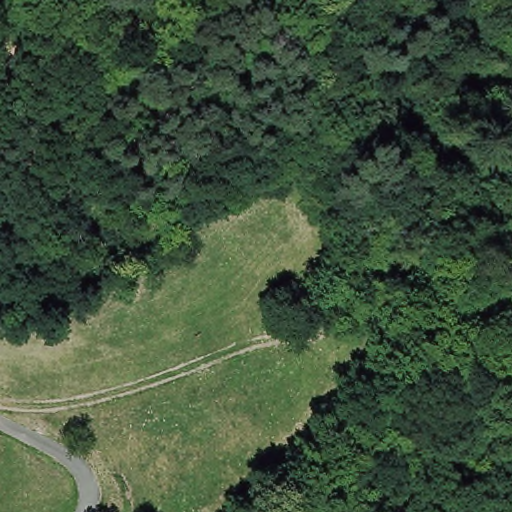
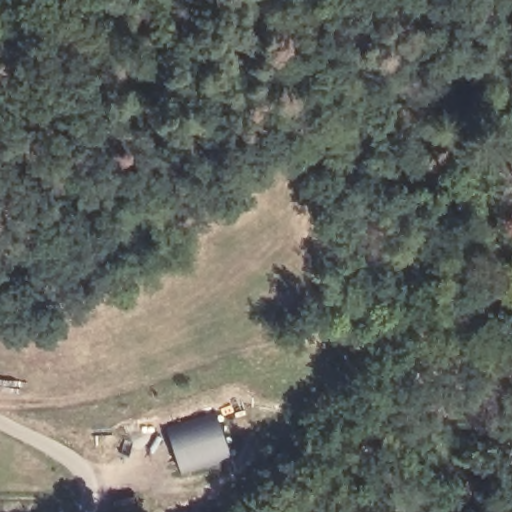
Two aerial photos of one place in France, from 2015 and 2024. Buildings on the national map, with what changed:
new [(216,413),(231,458),(180,474),(166,428),(216,413)]

